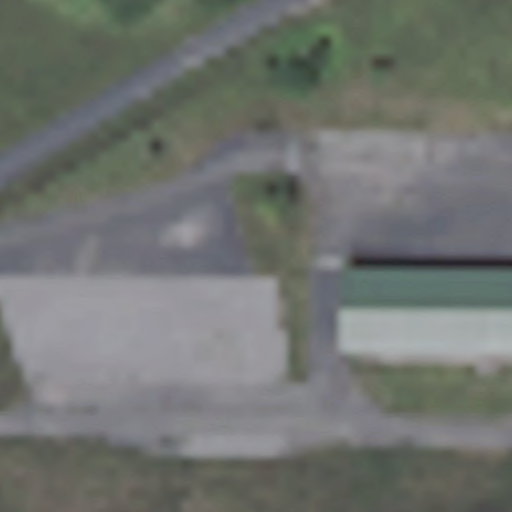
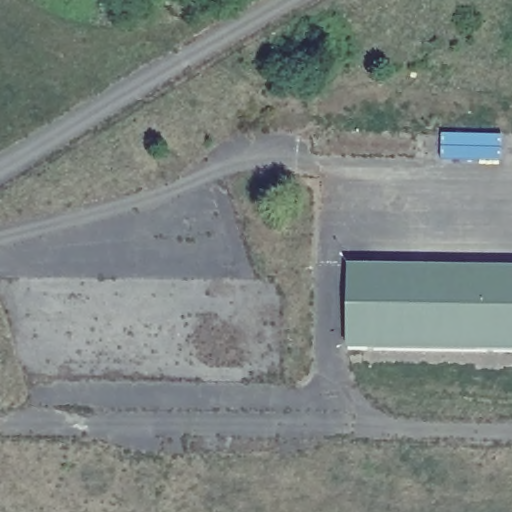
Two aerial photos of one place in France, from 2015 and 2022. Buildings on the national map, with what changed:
unchanged [(512,266),(512,354),(349,351),(351,265),(512,266)]

